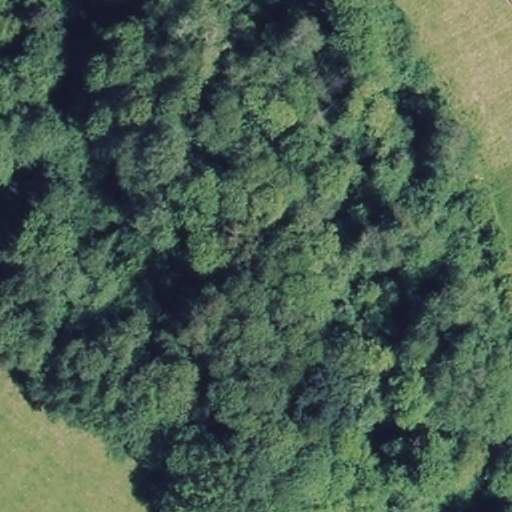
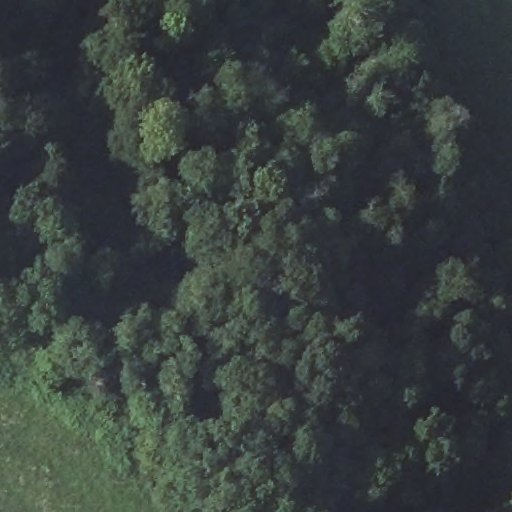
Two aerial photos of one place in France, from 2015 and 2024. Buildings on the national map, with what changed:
[]

